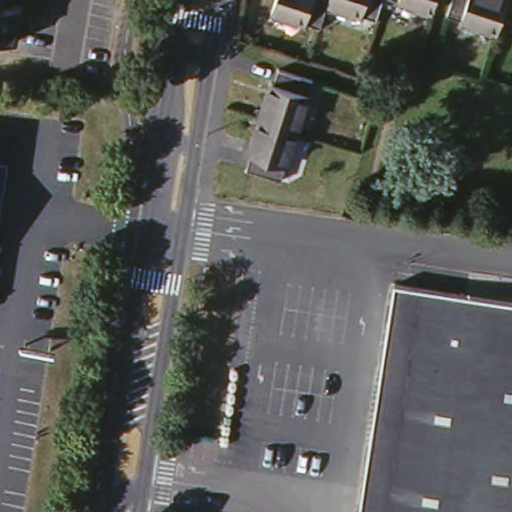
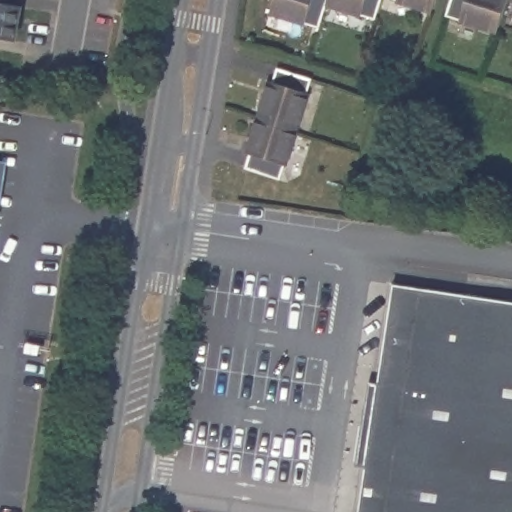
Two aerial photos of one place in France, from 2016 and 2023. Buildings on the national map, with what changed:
unchanged [(12,37),(0,35),(0,0),(10,0),(18,1),(12,37)]
unchanged [(303,18),(302,20),(270,9),(273,0),(326,0),(319,23),(303,18)]
unchanged [(361,9),(361,10),(330,0),(379,0),(375,12),(361,9)]
unchanged [(411,0),(432,0),(430,6),(411,0)]
unchanged [(461,21),(458,19),(446,15),(451,0),(507,0),(496,32),(461,21)]
unchanged [(308,83),(304,98),(306,98),(284,169),(282,169),(277,184),(243,174),(248,159),(245,158),(268,85),(271,86),(275,72),(308,83)]
unchanged [(512,512),(355,512),(388,282),(512,302),(512,512)]

